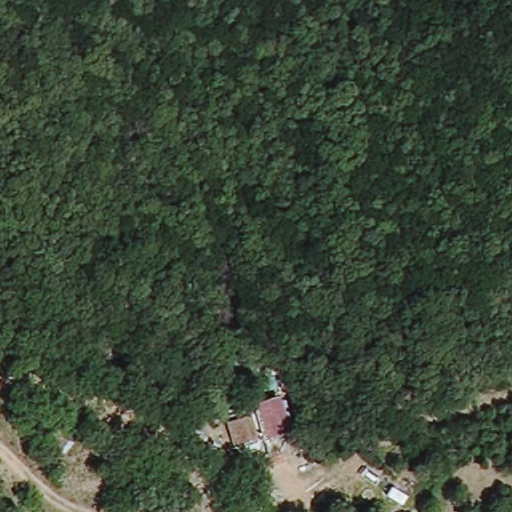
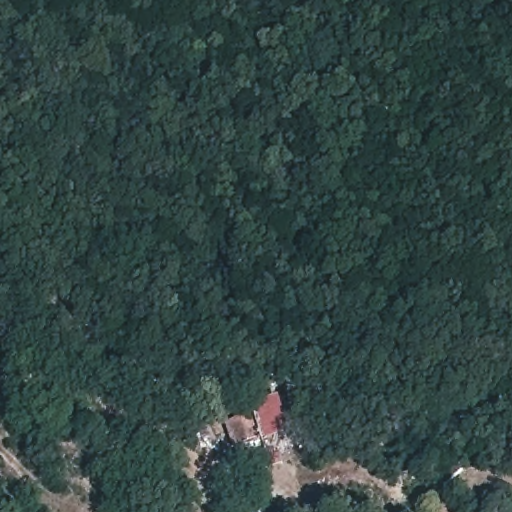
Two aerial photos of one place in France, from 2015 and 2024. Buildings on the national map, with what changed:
unchanged [(289,420),(257,432),(248,408),(280,396),(289,420)]

